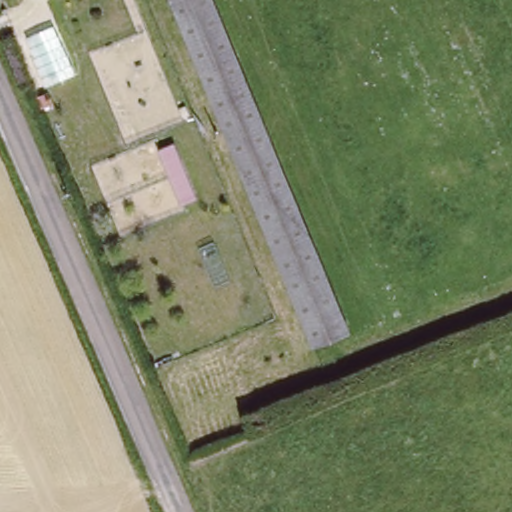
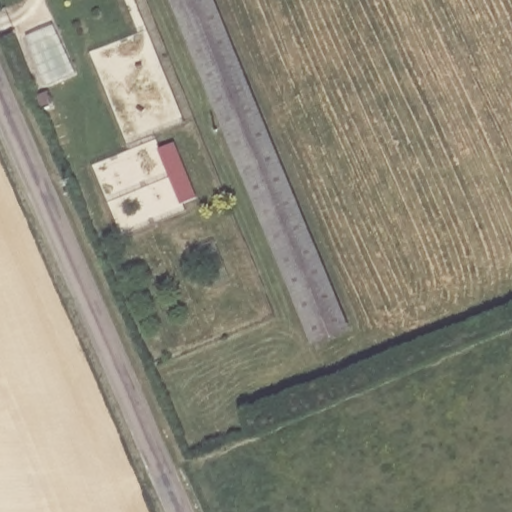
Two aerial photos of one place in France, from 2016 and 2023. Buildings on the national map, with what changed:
unchanged [(352,329),(314,345),(164,0),(209,0),(352,329)]

